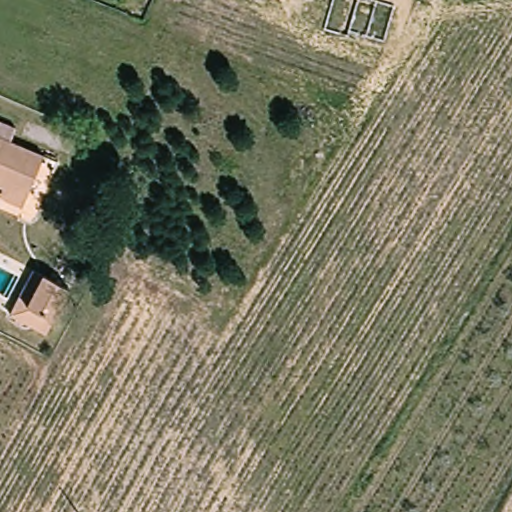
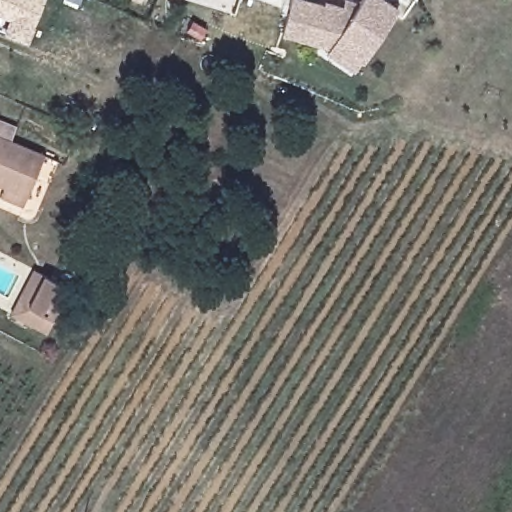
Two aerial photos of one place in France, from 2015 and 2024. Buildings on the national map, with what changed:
new [(29,39),(3,29),(8,19),(0,15),(0,0),(43,0),(29,39)]
new [(355,71),(326,51),(329,46),(282,35),(291,0),(309,0),(323,3),(323,1),(343,6),(344,0),(348,0),(358,3),(360,0),(386,0),(398,7),(355,71)]
demolished [(329,0),(357,0),(390,10),(379,45),(344,35),(343,40),(319,32),(329,0)]
unchanged [(1,125),(0,126),(0,125),(1,125)]
unchanged [(0,200),(0,192),(2,188),(0,187),(0,137),(46,161),(26,201),(22,209),(0,200)]
unchanged [(48,332),(26,321),(12,314),(32,269),(45,276),(68,288),(48,332)]

